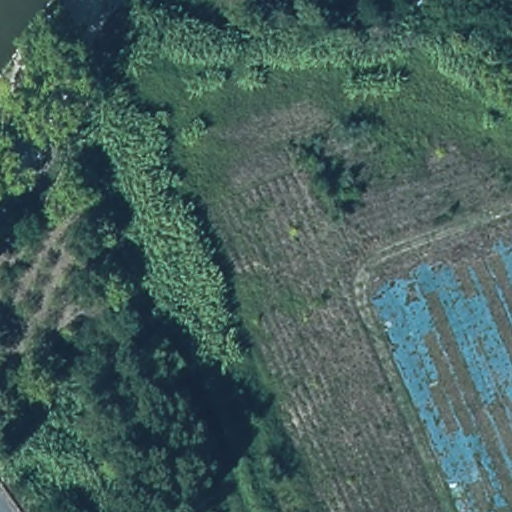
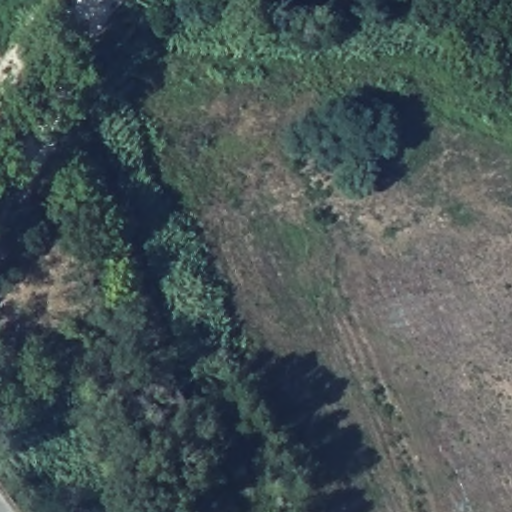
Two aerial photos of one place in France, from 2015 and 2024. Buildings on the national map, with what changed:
unchanged [(399,10),(400,0),(440,0),(439,13),(399,10)]

